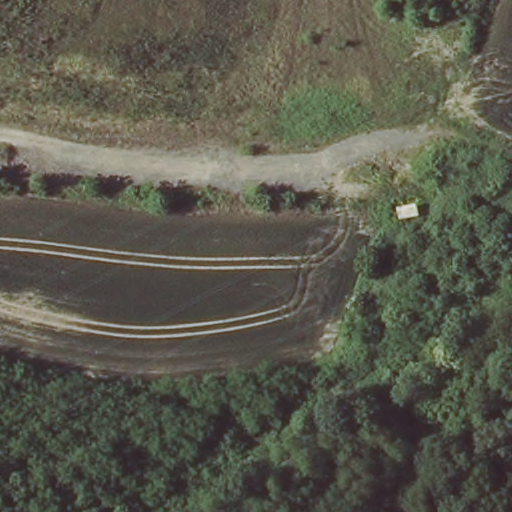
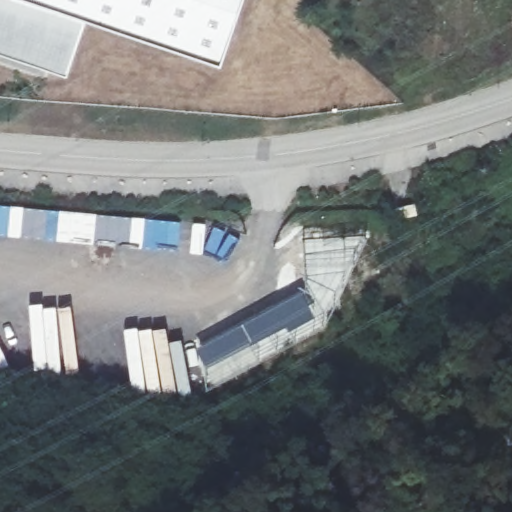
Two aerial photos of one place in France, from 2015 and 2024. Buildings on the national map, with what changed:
new [(220,64),(86,17),(66,74),(0,51),(0,0),(242,0),(220,64)]

